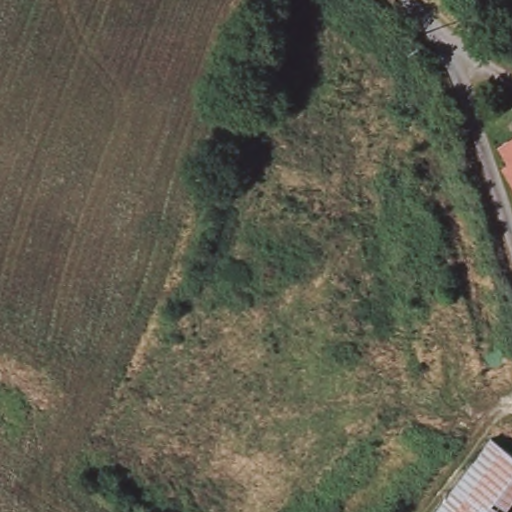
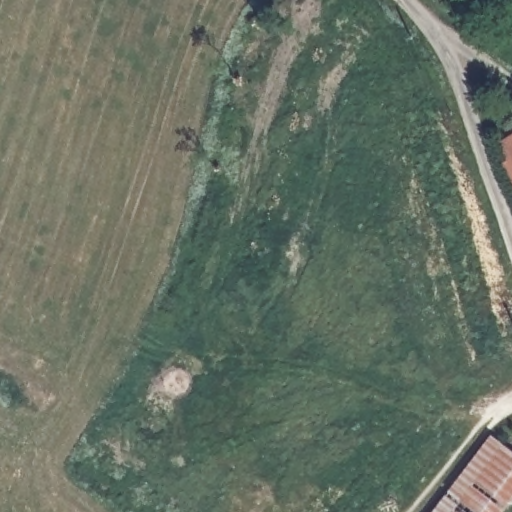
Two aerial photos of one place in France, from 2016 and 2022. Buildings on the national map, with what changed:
unchanged [(512,131),(512,149),(504,135),(512,131)]
unchanged [(512,154),(512,173),(507,157),(512,154)]
unchanged [(488,435),(512,454),(512,470),(481,512),(435,512),(488,435)]
unchanged [(512,509),(510,512),(481,512),(512,470),(512,509)]

